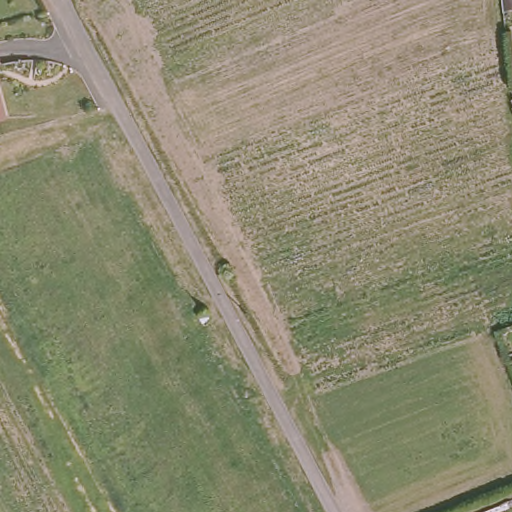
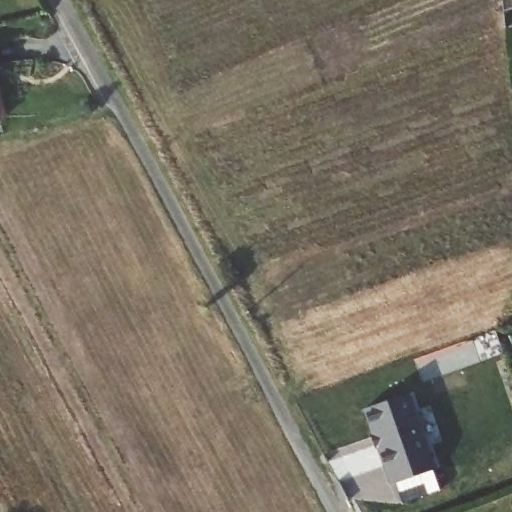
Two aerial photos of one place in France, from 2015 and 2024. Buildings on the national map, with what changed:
unchanged [(512,11),(501,13),(500,0),(512,0),(512,11)]
demolished [(512,29),(504,32),(501,13),(512,11),(512,29)]
new [(367,418),(383,413),(381,406),(409,397),(435,471),(390,487),(367,418)]

